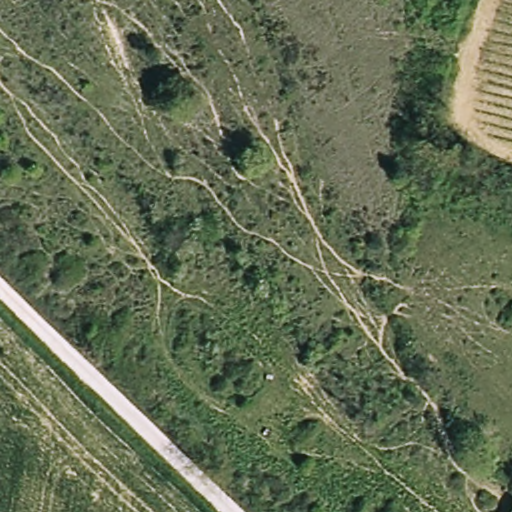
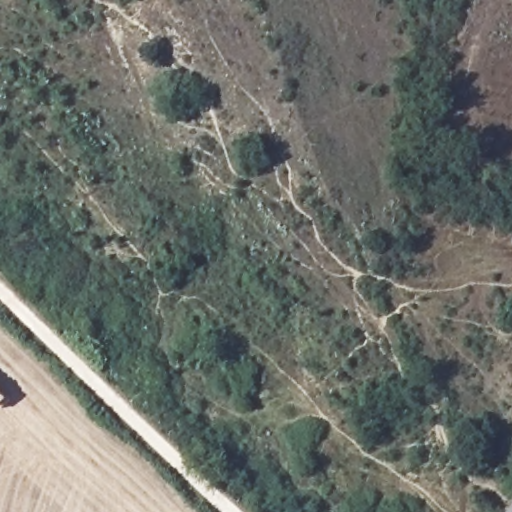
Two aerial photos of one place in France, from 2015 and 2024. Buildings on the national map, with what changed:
unchanged [(510,512),(512,510),(512,512),(510,512)]

